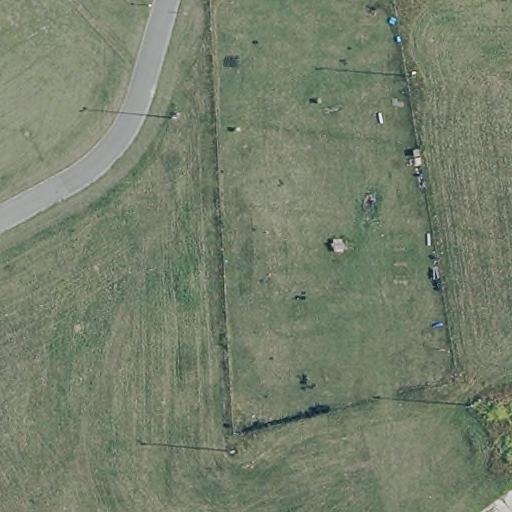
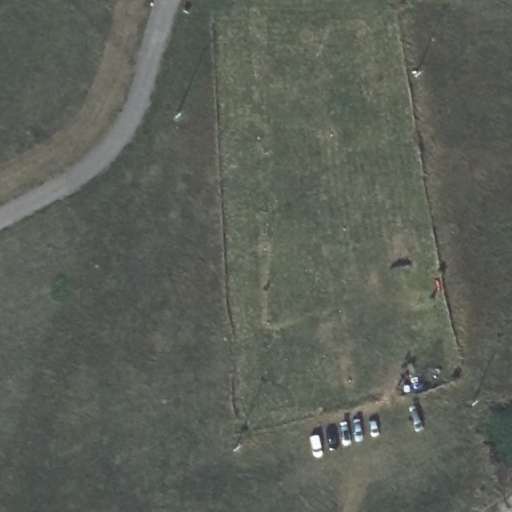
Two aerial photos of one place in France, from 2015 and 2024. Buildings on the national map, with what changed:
[]

